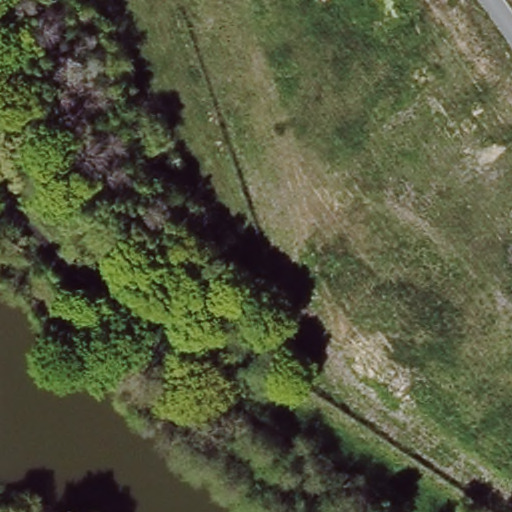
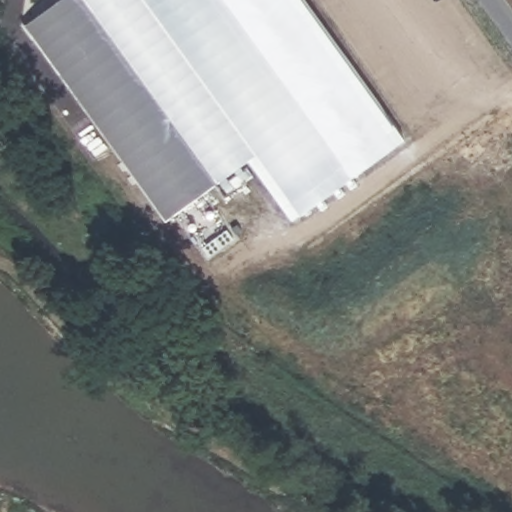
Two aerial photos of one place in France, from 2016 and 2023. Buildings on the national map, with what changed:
new [(292,221),(248,161),(165,221),(23,25),(57,0),(305,0),(404,138),(300,215),(292,221)]

